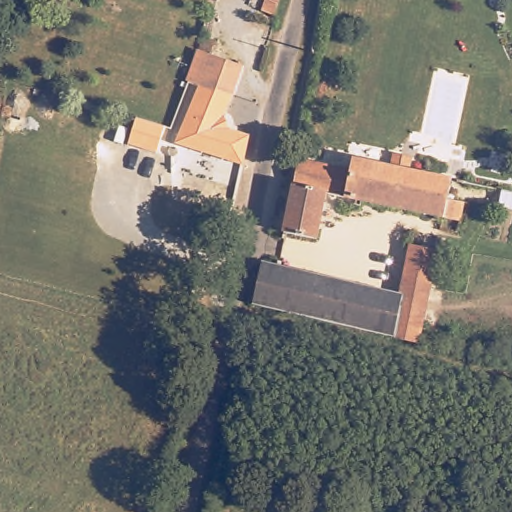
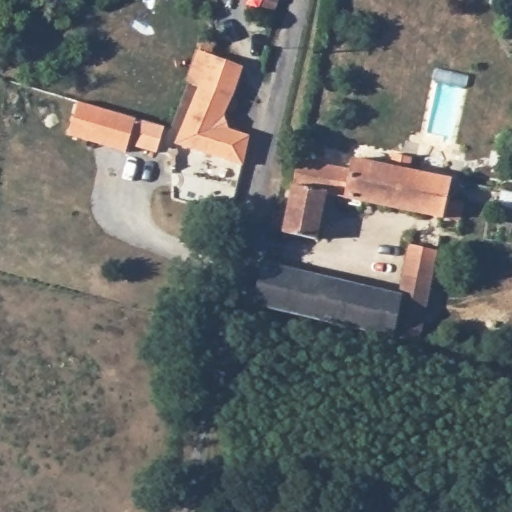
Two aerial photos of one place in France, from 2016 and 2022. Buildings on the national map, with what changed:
unchanged [(271,14),(262,11),(265,2),(258,0),(276,0),(271,14)]
unchanged [(219,55),(213,54),(211,51),(211,48),(212,45),(215,43),(217,42),(222,42),(219,55)]
unchanged [(207,91),(217,58),(249,69),(238,101),(207,91)]
unchanged [(192,133),(207,91),(238,101),(227,128),(257,140),(253,157),(220,146),(219,147),(192,137),(192,133)]
new [(78,101),(136,118),(163,126),(157,151),(130,145),(127,152),(67,135),(78,101)]
unchanged [(302,160),(347,167),(349,156),(388,163),(390,153),(412,156),(412,167),(469,178),(463,217),(450,216),(330,196),(322,241),(287,235),(302,160)]
unchanged [(395,334),(403,291),(412,239),(441,244),(423,339),(395,334)]
unchanged [(256,307),(263,266),(403,291),(395,334),(256,307)]

